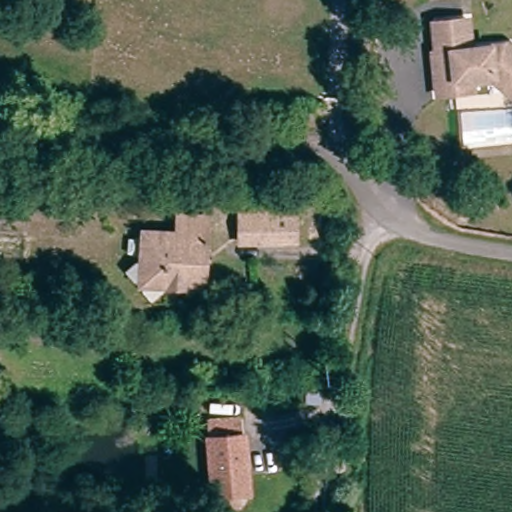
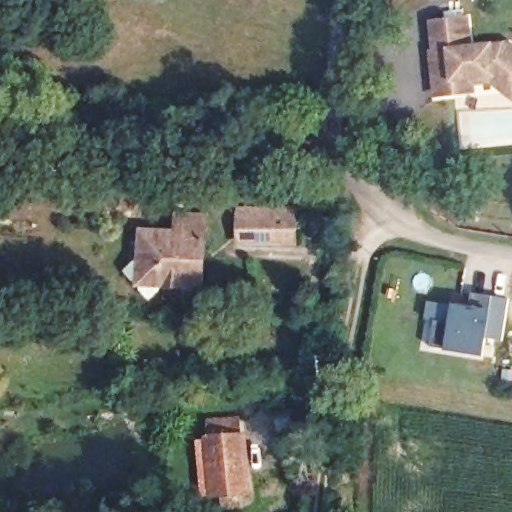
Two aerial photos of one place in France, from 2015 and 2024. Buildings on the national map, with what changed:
unchanged [(440,89),(439,84),(436,62),(439,61),(434,17),(467,12),(471,42),(511,37),(512,39),(512,87),(494,72),(474,76),(475,85),(440,89)]
unchanged [(237,241),(238,204),(297,204),(297,242),(237,241)]
unchanged [(169,281),(153,293),(129,270),(139,258),(139,237),(160,236),(159,227),(176,227),(176,210),(208,210),(208,230),(207,281),(169,281)]
new [(451,323),(454,303),(472,306),(474,294),(495,297),(493,308),(486,356),(446,350),(432,347),(437,322),(451,323)]
unchanged [(239,421),(243,477),(208,479),(204,422),(239,421)]

